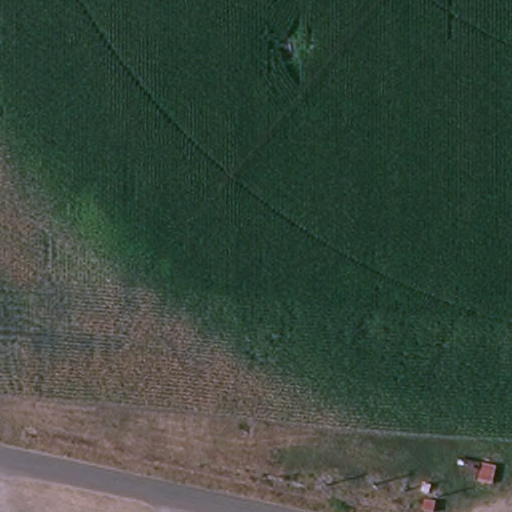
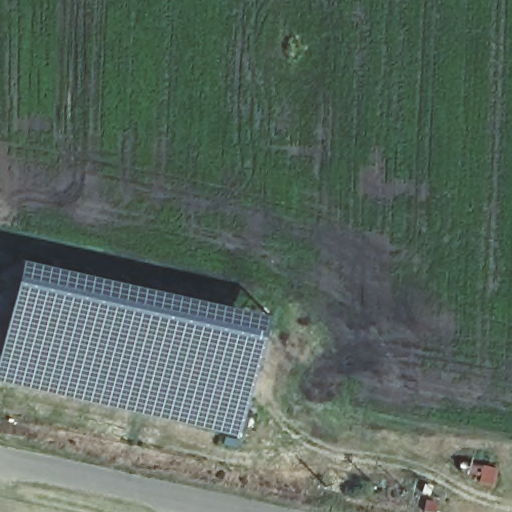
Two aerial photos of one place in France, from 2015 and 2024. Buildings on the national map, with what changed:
new [(237,432),(0,379),(0,349),(21,255),(264,310),(237,432)]

